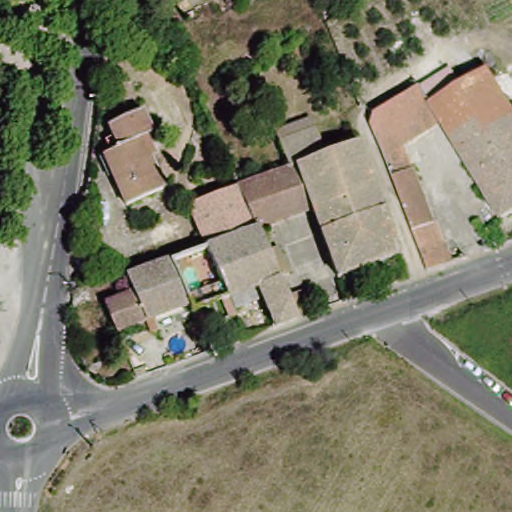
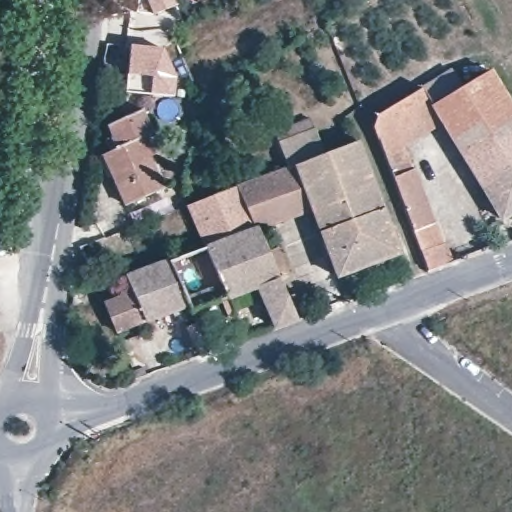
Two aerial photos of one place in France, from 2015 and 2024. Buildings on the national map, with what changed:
new [(170,72),(176,71),(178,79),(173,96),(151,94),(151,75),(130,74),(131,46),(168,48),(170,72)]
unchanged [(505,214),(445,121),(423,87),(455,70),(465,84),(492,68),(494,71),(512,99),(512,209),(505,214)]
unchanged [(423,87),(445,121),(389,156),(378,126),(380,111),(423,87)]
unchanged [(123,209),(104,160),(111,156),(105,143),(112,141),(106,128),(141,113),(153,138),(148,140),(155,157),(148,162),(161,194),(123,209)]
unchanged [(316,132),(328,128),(333,143),(345,139),(348,147),(360,143),(404,254),(338,275),(313,210),(297,167),(291,169),(283,146),(316,132)]
unchanged [(431,269),(395,172),(416,165),(438,222),(425,226),(433,244),(445,240),(453,262),(431,269)]
unchanged [(258,289),(193,313),(191,306),(172,262),(207,248),(260,226),(243,188),(291,169),(297,167),(313,210),(271,227),(280,248),(291,276),(284,279),(290,294),(303,290),(315,316),(302,320),(276,330),(258,289)]
unchanged [(243,188),(260,226),(207,248),(190,208),(243,188)]
unchanged [(136,293),(133,291),(129,280),(172,262),(191,306),(148,321),(136,293)]
unchanged [(118,332),(107,302),(133,291),(136,293),(148,321),(118,332)]
unchanged [(0,360),(0,358),(1,360),(0,360)]

